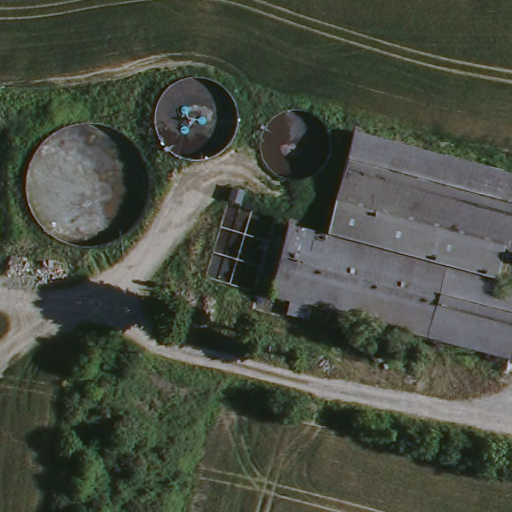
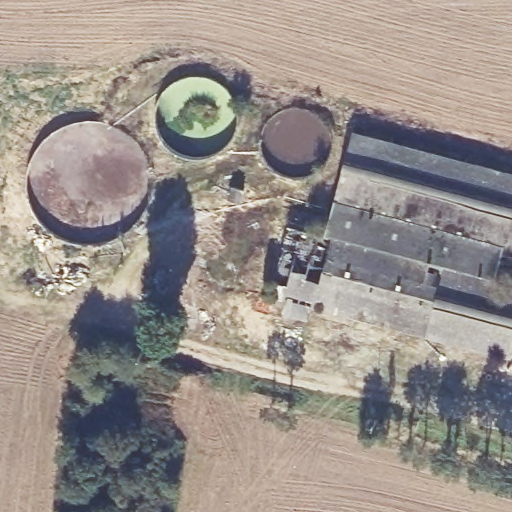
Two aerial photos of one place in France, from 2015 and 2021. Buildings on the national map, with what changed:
unchanged [(286,224),(324,234),(349,135),(512,177),(512,254),(503,251),(496,284),(512,287),(512,347),(508,362),(267,299),(286,224)]

